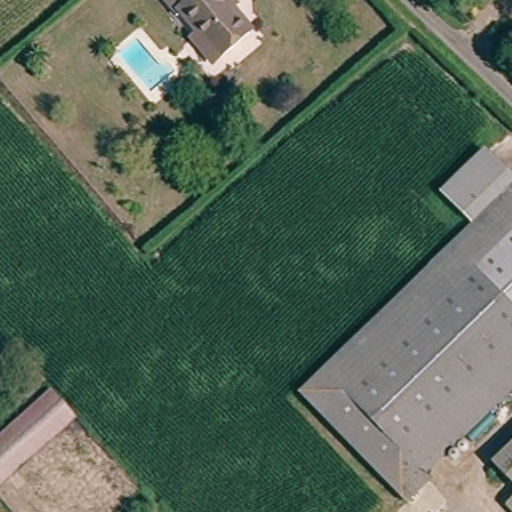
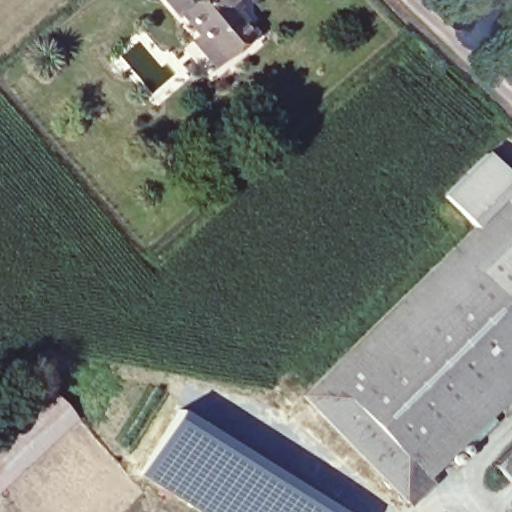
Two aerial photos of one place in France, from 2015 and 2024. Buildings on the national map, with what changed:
unchanged [(191,40),(202,30),(178,5),(174,9),(165,0),(225,0),(224,0),(253,29),(227,55),(215,65),(191,40)]
unchanged [(457,216),(436,195),(483,152),(502,171),(512,181),(512,240),(475,272),(512,311),(512,408),(437,482),(447,494),(427,512),(417,512),(301,395),(469,228),(457,216)]
unchanged [(512,240),(512,311),(475,272),(512,240)]
unchanged [(75,421),(0,493),(0,445),(51,395),(75,421)]
new [(177,408),(343,512),(197,512),(136,474),(177,408)]
unchanged [(512,440),(512,482),(491,460),(512,440)]
unchanged [(457,512),(440,512),(448,503),(457,512)]
unchanged [(512,503),(512,510),(508,506),(512,503)]

